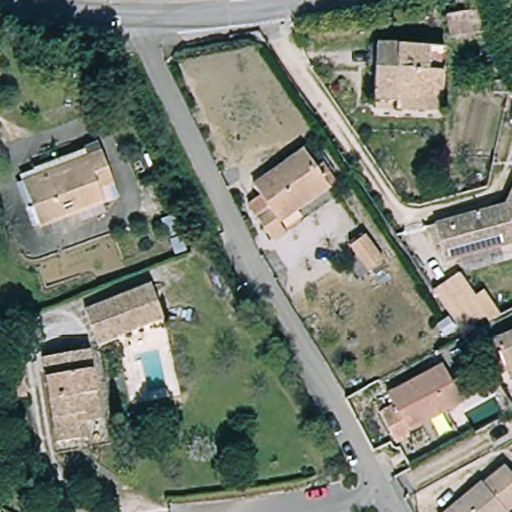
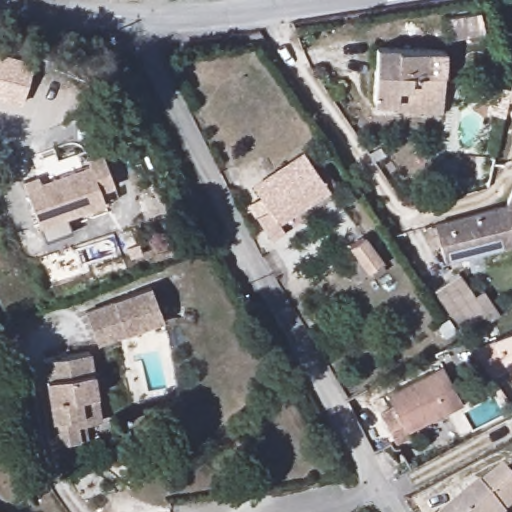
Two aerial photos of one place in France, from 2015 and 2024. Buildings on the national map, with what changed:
new [(0,97),(0,51),(34,60),(22,102),(0,97)]
unchanged [(397,115),(397,105),(376,105),(378,51),(443,53),(442,102),(441,116),(397,115)]
new [(509,84),(512,84),(512,117),(510,116),(512,100),(508,99),(509,84)]
unchanged [(273,240),(256,215),(269,206),(254,184),(304,150),(329,187),(278,220),(286,232),(273,240)]
unchanged [(114,189),(99,194),(104,205),(40,231),(23,189),(39,181),(36,175),(85,156),(87,161),(101,156),(114,189)]
unchanged [(504,205),(512,186),(512,237),(512,240),(512,242),(442,258),(432,221),(504,205)]
unchanged [(366,235),(384,262),(361,275),(352,261),(362,255),(353,243),(366,235)]
unchanged [(433,285),(459,270),(485,315),(461,328),(433,285)]
unchanged [(157,288),(166,312),(101,337),(93,312),(157,288)]
unchanged [(496,373),(481,350),(512,335),(512,366),(496,373)]
unchanged [(88,351),(102,419),(79,424),(82,440),(61,445),(44,361),(88,351)]
unchanged [(441,359),(462,395),(407,425),(410,431),(398,438),(378,404),(392,397),(387,387),(441,359)]
unchanged [(484,485),(487,487),(507,470),(512,477),(512,503),(504,509),(505,511),(504,512),(450,512),(484,485)]

